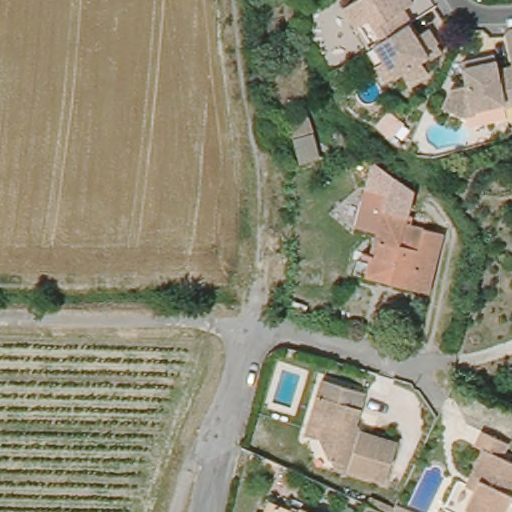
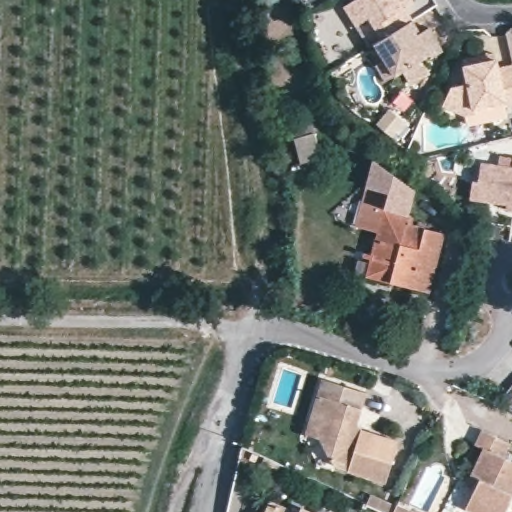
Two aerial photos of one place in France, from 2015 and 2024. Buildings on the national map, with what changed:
unchanged [(373,18),(361,26),(349,6),(359,0),(416,0),(417,1),(407,8),(415,20),(387,38),(373,18)]
unchanged [(415,83),(407,70),(399,75),(391,80),(380,64),(389,59),(379,43),(387,38),(415,20),(423,34),(433,28),(437,34),(442,42),(435,46),(430,49),(433,54),(425,58),(433,71),(415,83)]
new [(505,27),(512,26),(512,69),(509,55),(505,27)]
demolished [(509,55),(495,58),(492,36),(495,32),(505,32),(509,55)]
unchanged [(512,69),(512,90),(502,91),(498,69),(495,58),(509,55),(512,69)]
unchanged [(497,70),(505,107),(490,110),(492,121),(452,129),(450,127),(449,119),(428,109),(436,91),(452,88),(447,65),(462,62),(480,58),(480,64),(482,73),(497,70)]
unchanged [(320,157),(300,163),(288,122),(310,116),(320,157)]
unchanged [(375,240),(377,232),(355,226),(365,187),(370,159),(415,191),(410,216),(413,217),(412,224),(412,226),(443,234),(428,292),(390,282),(366,276),(370,258),(375,240)]
new [(470,197),(472,180),(478,180),(482,162),(512,166),(512,209),(507,208),(507,204),(488,201),(470,197)]
unchanged [(353,428),(397,442),(385,481),(333,465),(317,435),(306,431),(317,396),(322,379),(365,392),(353,428)]
unchanged [(483,448),(474,444),(480,430),(508,443),(505,452),(512,455),(510,460),(512,462),(512,496),(505,512),(472,512),(465,508),(473,489),(465,486),(471,474),(483,448)]
unchanged [(294,512),(263,512),(268,500),(294,512)]
unchanged [(410,512),(393,512),(396,505),(410,512)]
unchanged [(312,512),(298,512),(300,507),(312,512)]

